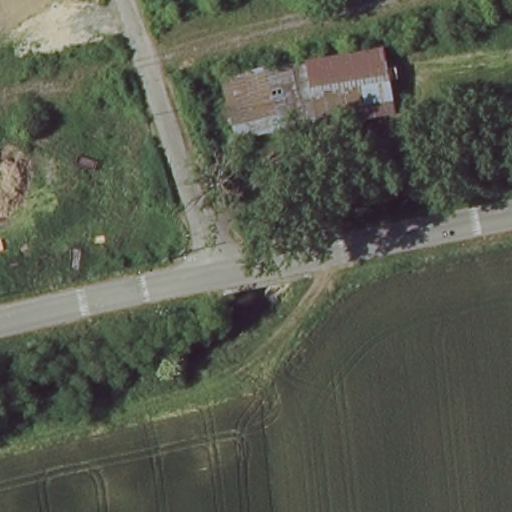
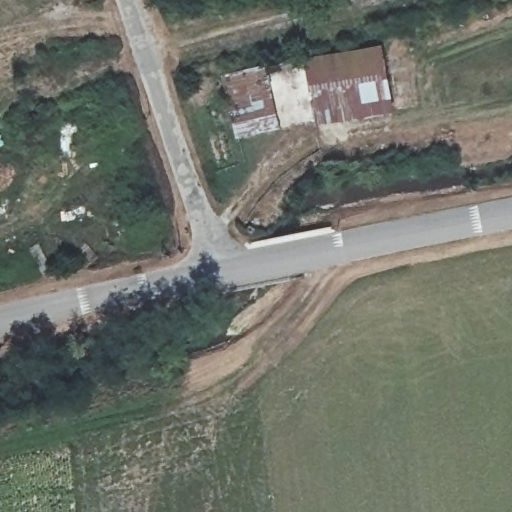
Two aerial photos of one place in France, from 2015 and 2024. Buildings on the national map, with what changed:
unchanged [(381,48),(392,103),(316,117),(305,63),(381,48)]
unchanged [(294,66),(304,129),(238,142),(223,80),(294,66)]

